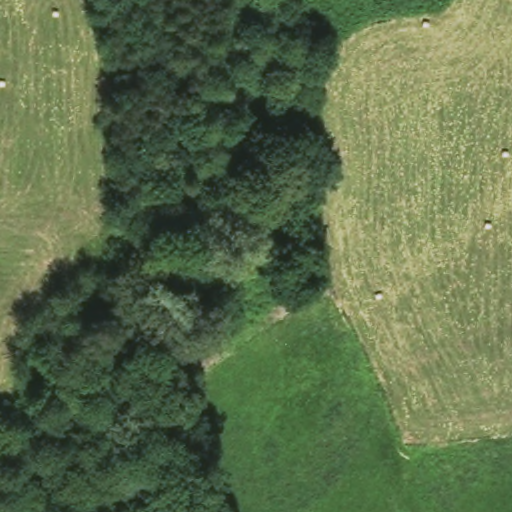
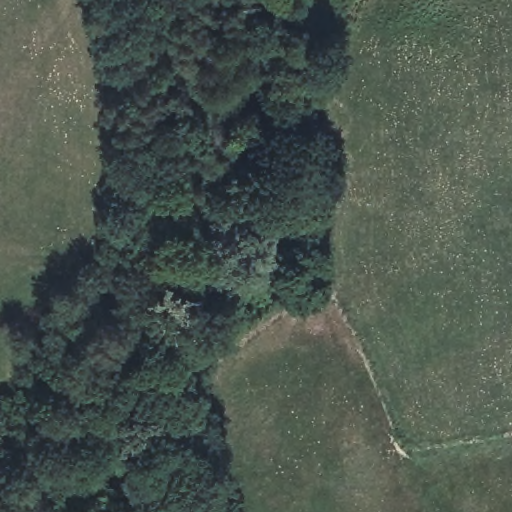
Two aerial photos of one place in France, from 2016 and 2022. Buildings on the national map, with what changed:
[]

